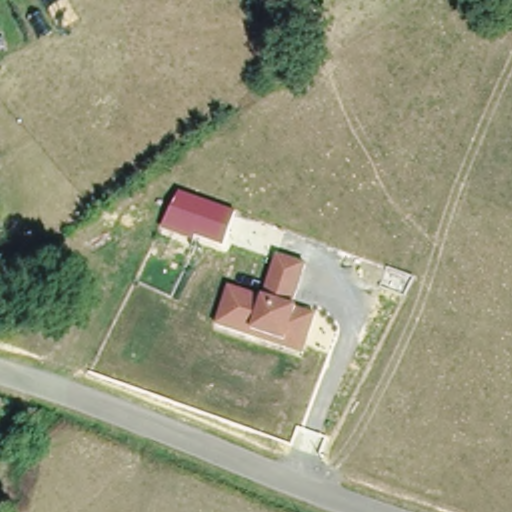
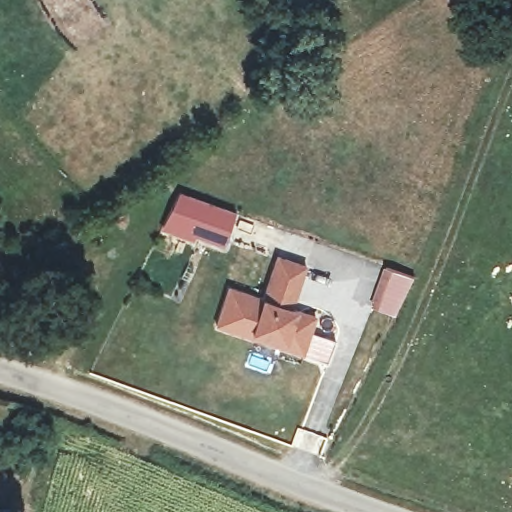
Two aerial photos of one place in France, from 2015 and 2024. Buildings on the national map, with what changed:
unchanged [(236,212),(222,247),(161,225),(179,191),(236,212)]
unchanged [(255,337),(219,325),(232,287),(267,298),(281,256),(310,266),(296,308),(320,316),(312,338),(307,355),(255,337)]
new [(385,266),(413,276),(398,316),(371,305),(385,266)]

